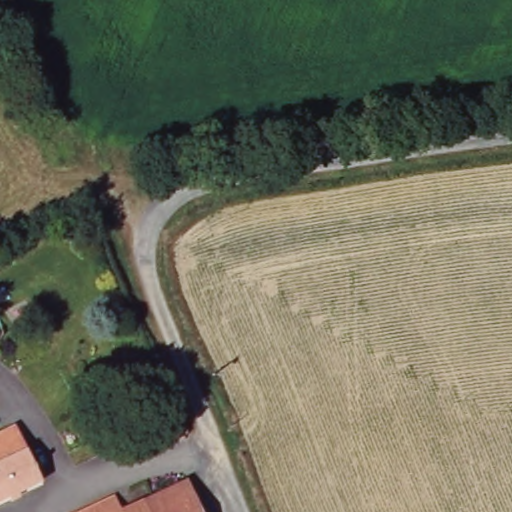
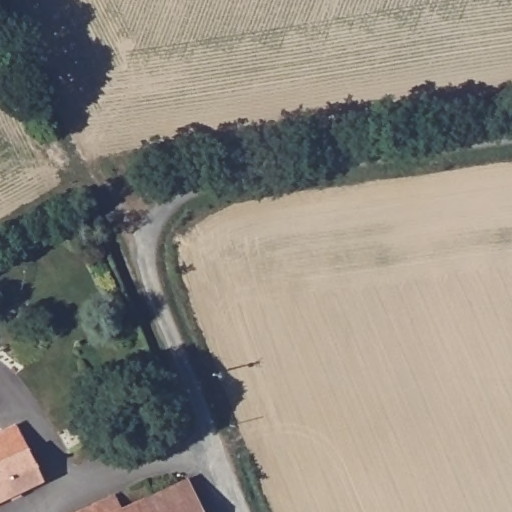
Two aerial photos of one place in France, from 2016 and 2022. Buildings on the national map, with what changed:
unchanged [(186,433),(173,438),(167,421),(161,406),(175,401),(186,433)]
unchanged [(42,480),(0,500),(0,434),(16,426),(42,480)]
unchanged [(94,503),(115,494),(122,509),(146,498),(187,479),(202,512),(75,512),(94,503)]

